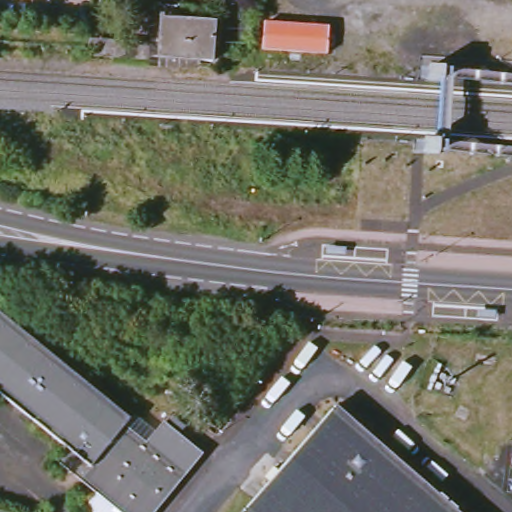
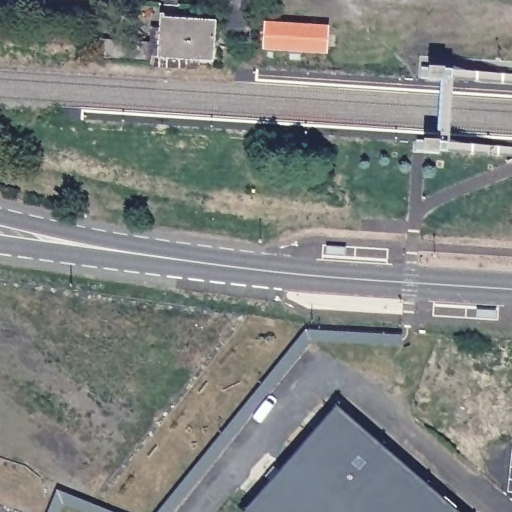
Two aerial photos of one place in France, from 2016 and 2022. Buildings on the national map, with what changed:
unchanged [(158,59),(160,17),(217,21),(215,63),(158,59)]
unchanged [(327,55),(264,51),(266,24),(329,28),(327,55)]
demolished [(0,313),(134,420),(126,430),(151,448),(175,416),(194,430),(185,441),(203,455),(158,512),(95,512),(94,510),(92,503),(102,493),(85,480),(94,467),(70,447),(0,392),(0,313)]
unchanged [(336,408),(454,512),(248,512),(247,511),(336,408)]

